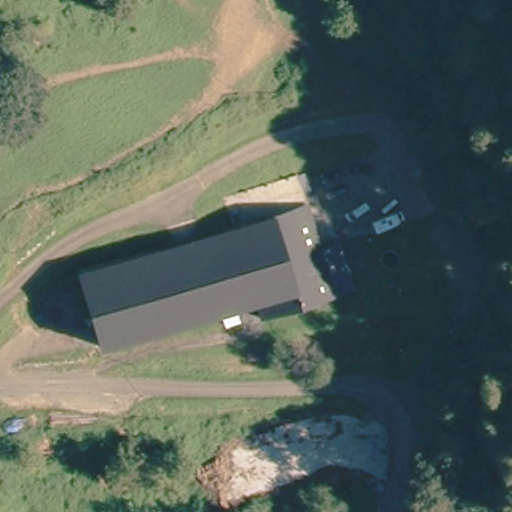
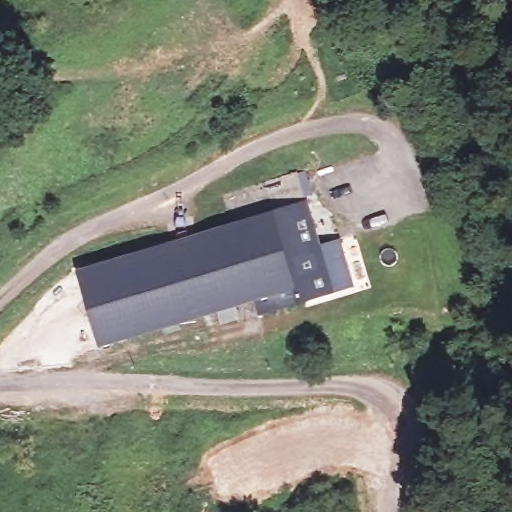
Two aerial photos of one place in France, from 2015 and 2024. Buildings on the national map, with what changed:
unchanged [(228,234),(221,201),(297,186),(297,189),(305,187),(310,210),(302,212),(314,264),(333,260),(343,307),(286,319),(247,327),(244,312),(87,340),(71,264),(228,234)]

